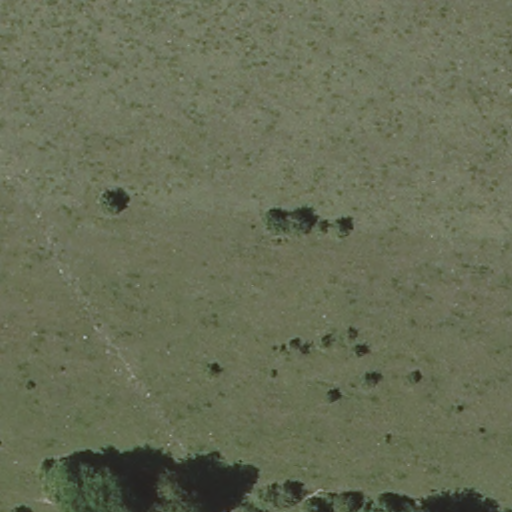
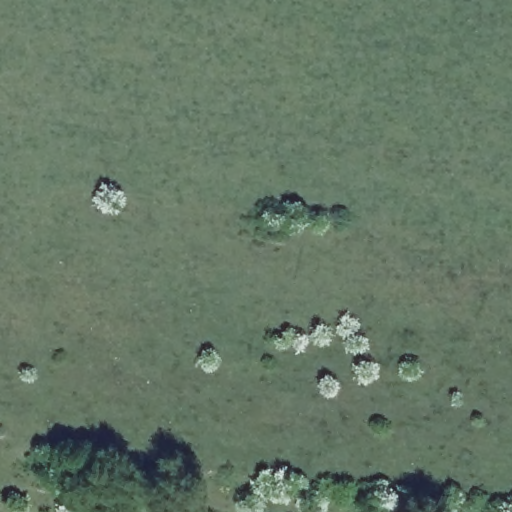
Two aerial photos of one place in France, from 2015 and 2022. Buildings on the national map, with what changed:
[]

